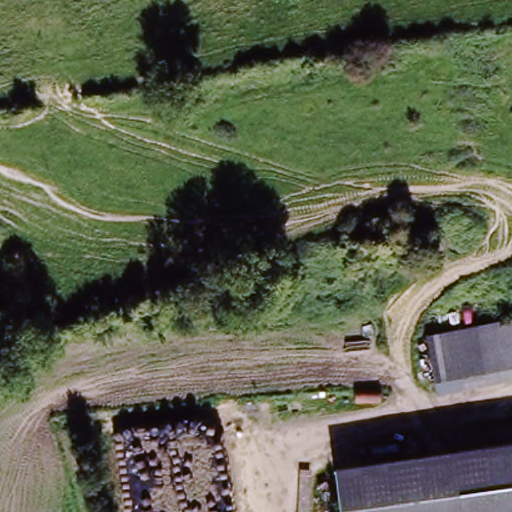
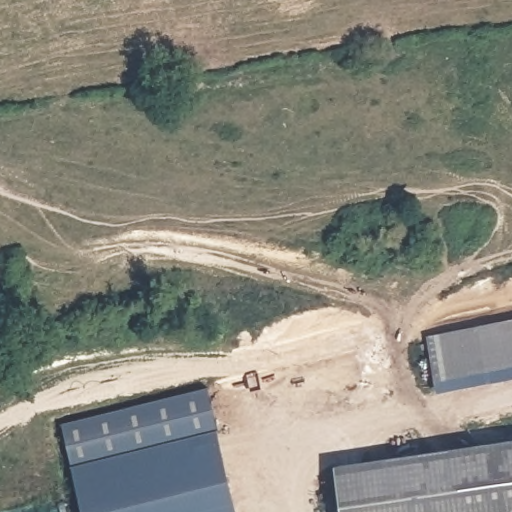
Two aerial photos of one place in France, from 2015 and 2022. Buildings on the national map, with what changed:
unchanged [(512,321),(512,387),(438,402),(427,337),(512,321)]
new [(244,512),(87,512),(56,402),(202,361),(244,512)]
unchanged [(506,512),(500,469),(496,443),(512,441),(512,512),(506,512)]
unchanged [(496,443),(500,469),(506,512),(334,512),(327,469),(496,443)]

